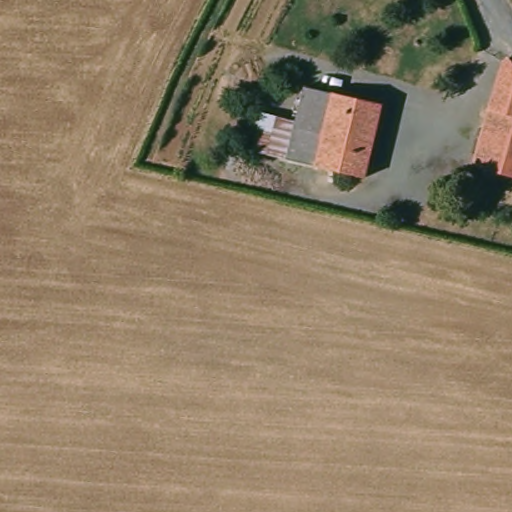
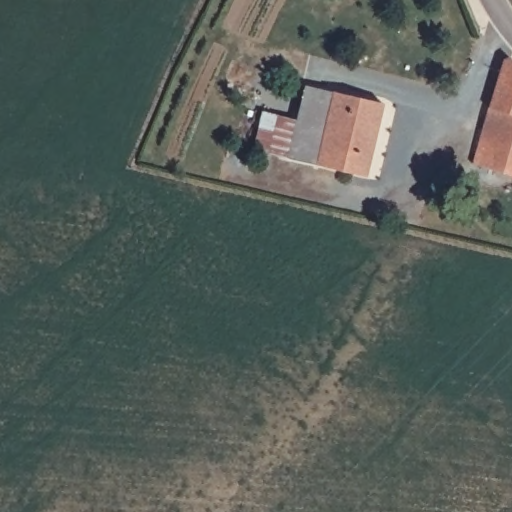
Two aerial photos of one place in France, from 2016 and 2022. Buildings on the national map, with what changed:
unchanged [(476,177),(508,67),(512,72),(512,187),(476,177)]
unchanged [(295,132),(304,95),(332,102),(314,176),(252,161),(261,124),(295,132)]
unchanged [(381,114),(363,187),(314,176),(332,102),(381,114)]

